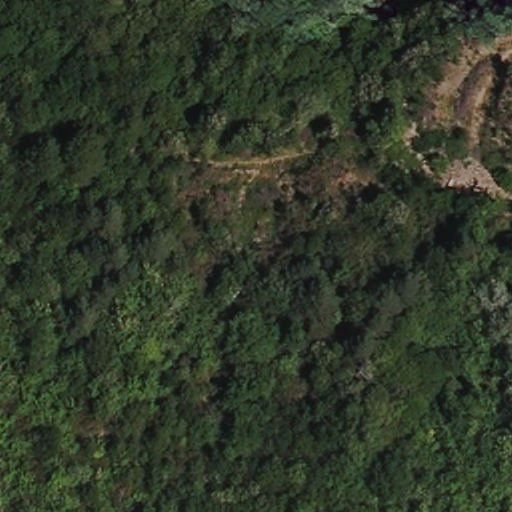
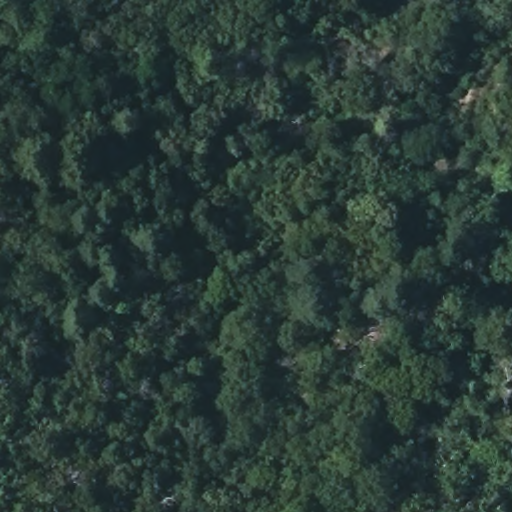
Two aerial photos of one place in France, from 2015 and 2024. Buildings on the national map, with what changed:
unchanged [(105,201),(98,221),(79,212),(86,195),(105,201)]

